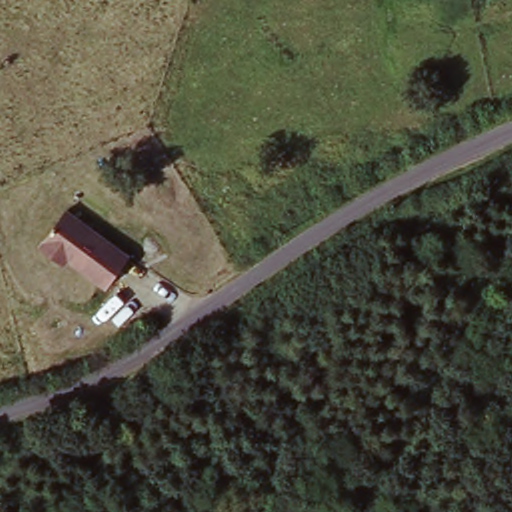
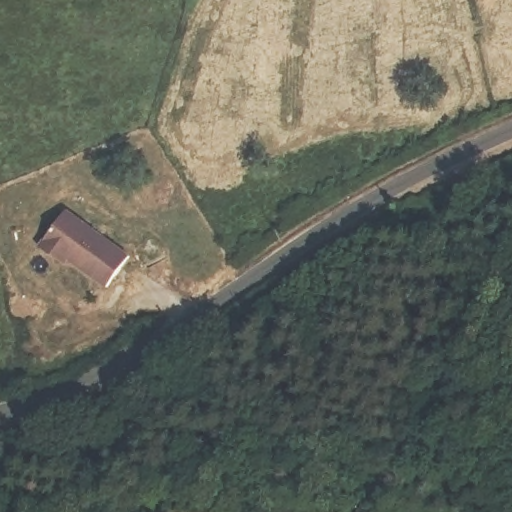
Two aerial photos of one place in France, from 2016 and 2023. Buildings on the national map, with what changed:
unchanged [(60,213),(122,257),(100,288),(35,247),(60,213)]

